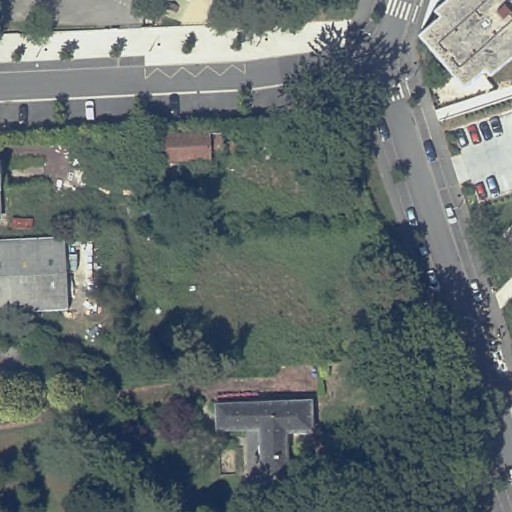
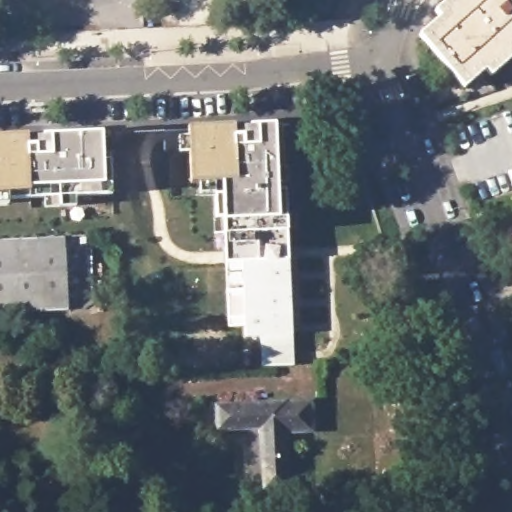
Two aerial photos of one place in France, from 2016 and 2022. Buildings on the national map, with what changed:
unchanged [(494,81),(488,74),(467,92),(422,39),(441,21),(436,15),(453,0),(512,0),(512,65),(494,81)]
new [(234,124),(234,132),(243,131),(243,126),(275,125),(277,190),(284,190),(285,231),(286,257),(290,257),(294,330),(294,366),(261,367),(260,338),(244,337),(243,262),(224,263),(222,234),(222,219),(220,182),(190,183),(187,126),(234,124)]
new [(29,137),(102,132),(105,185),(33,189),(32,191),(0,193),(0,135),(29,134),(29,137)]
demolished [(223,132),(223,142),(213,144),(213,150),(169,153),(169,146),(159,145),(158,137),(223,132)]
demolished [(8,187),(1,187),(3,216),(0,216),(0,157),(5,157),(8,187)]
unchanged [(0,316),(0,242),(59,239),(69,238),(72,273),(63,273),(66,312),(17,315),(0,316)]
unchanged [(81,246),(91,245),(92,260),(83,261),(81,246)]
unchanged [(41,378),(0,380),(0,348),(39,346),(41,378)]
unchanged [(260,431),(219,432),(219,405),(313,401),(314,432),(288,433),(289,491),(263,492),(260,431)]

